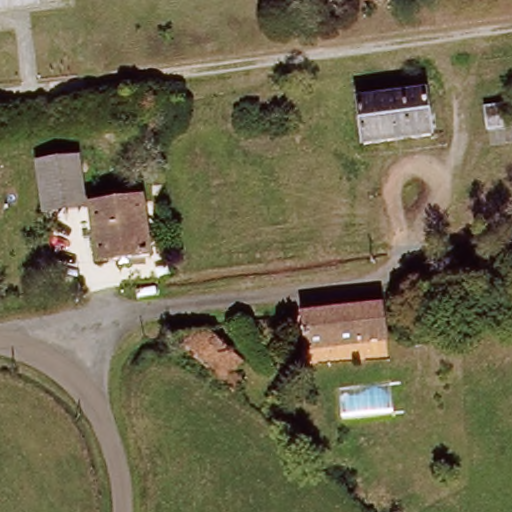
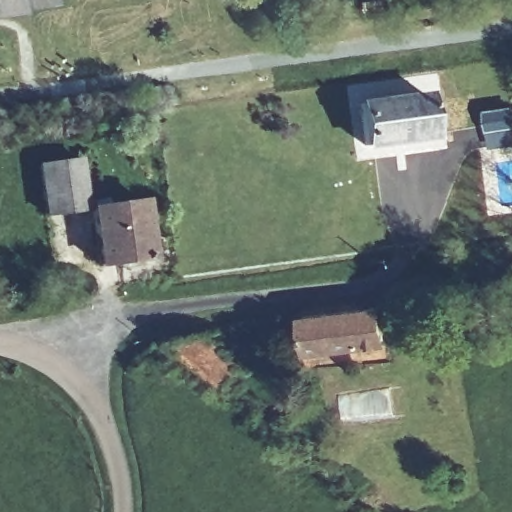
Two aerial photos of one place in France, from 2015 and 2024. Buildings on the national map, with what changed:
unchanged [(68,2),(38,7),(39,14),(0,19),(0,0),(67,0),(68,2)]
unchanged [(426,101),(431,139),(363,147),(358,110),(426,101)]
unchanged [(512,112),(512,149),(492,148),(491,112),(512,112)]
unchanged [(84,215),(46,222),(39,177),(77,171),(84,215)]
unchanged [(94,204),(145,197),(153,257),(103,265),(94,204)]
unchanged [(380,347),(312,358),(308,320),(378,311),(380,347)]
unchanged [(174,347),(208,339),(245,368),(226,390),(174,347)]

